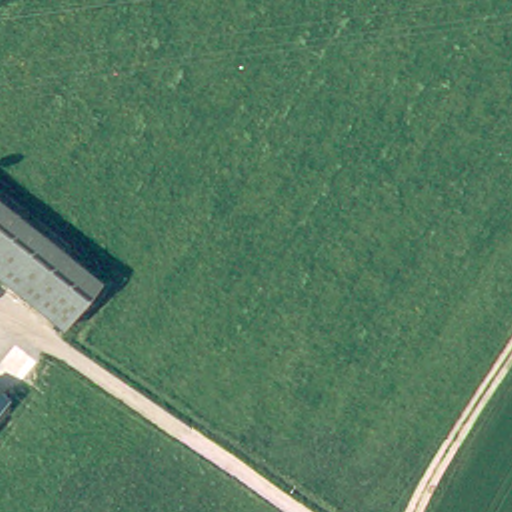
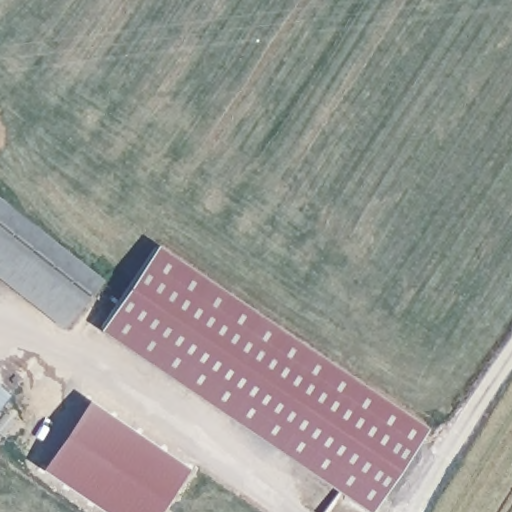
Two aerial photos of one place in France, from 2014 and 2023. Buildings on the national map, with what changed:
unchanged [(0,274),(0,199),(105,283),(69,327),(0,274)]
new [(427,425),(369,511),(99,329),(157,243),(427,425)]

